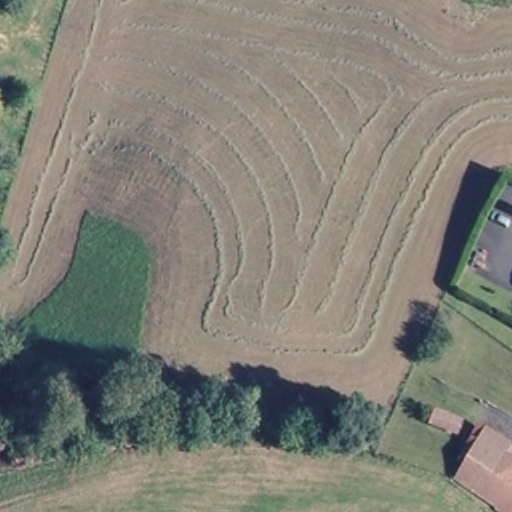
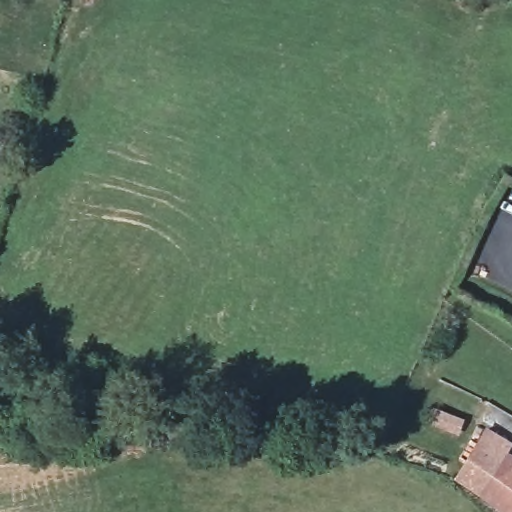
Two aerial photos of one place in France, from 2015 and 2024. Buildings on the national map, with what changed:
unchanged [(511,492),(502,511),(446,482),(476,426),(498,438),(489,453),(511,467),(503,481),(500,485),(511,492)]

